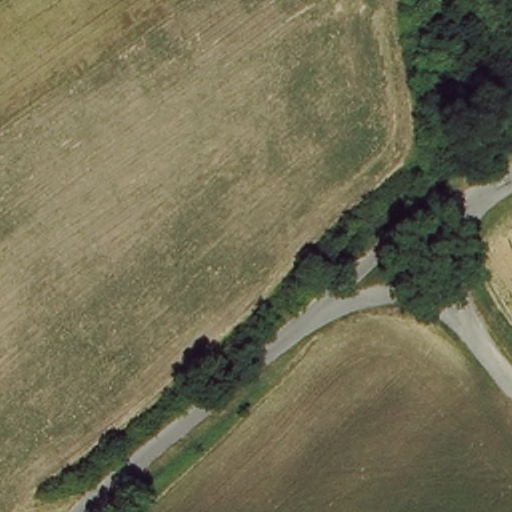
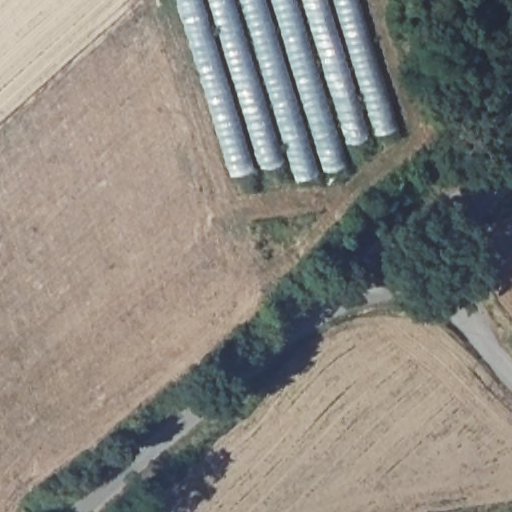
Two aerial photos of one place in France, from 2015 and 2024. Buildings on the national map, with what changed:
new [(395,127),(339,145),(344,166),(296,182),(291,161),(229,178),(174,0),(356,0),(395,127)]

